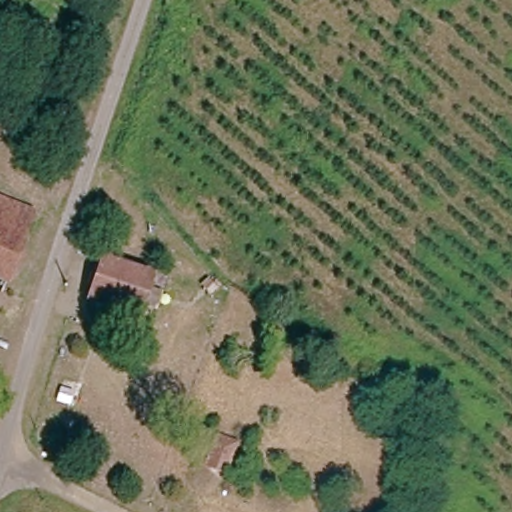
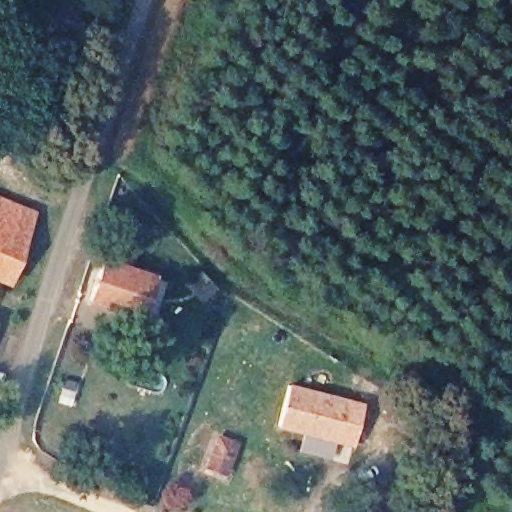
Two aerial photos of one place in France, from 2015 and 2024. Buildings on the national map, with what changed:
unchanged [(23,236),(0,227),(0,201),(29,212),(23,236)]
unchanged [(6,282),(0,280),(0,227),(23,236),(6,282)]
unchanged [(138,317),(89,300),(102,260),(151,277),(138,317)]
new [(290,383),(363,402),(352,446),(280,427),(290,383)]
unchanged [(231,456),(224,474),(206,467),(213,450),(231,456)]

